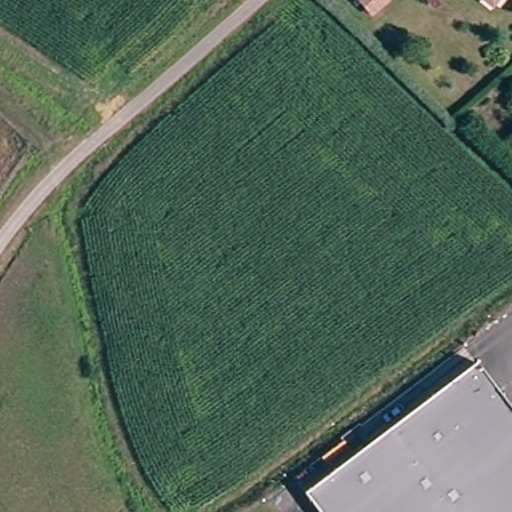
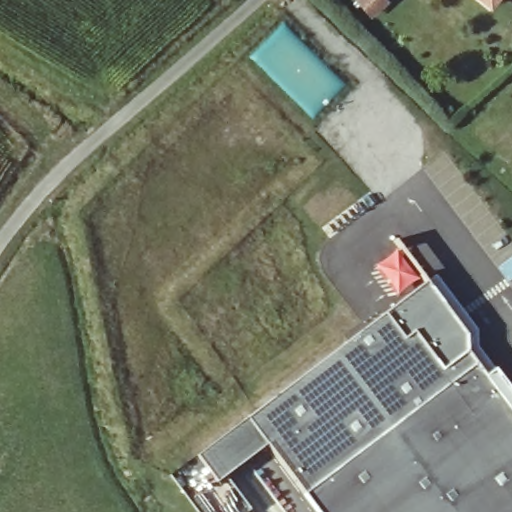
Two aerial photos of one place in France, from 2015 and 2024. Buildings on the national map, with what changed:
unchanged [(368,0),(393,0),(378,13),(368,0)]
unchanged [(501,0),(499,3),(495,0),(501,0)]
new [(478,332),(477,348),(489,364),(484,366),(314,494),(309,499),(269,446),(217,484),(198,456),(428,282),(435,277),(478,332)]
unchanged [(512,441),(512,512),(327,512),(314,494),(484,366),(510,400),(492,414),(512,441)]
unchanged [(512,403),(512,441),(492,414),(510,400),(512,403)]

